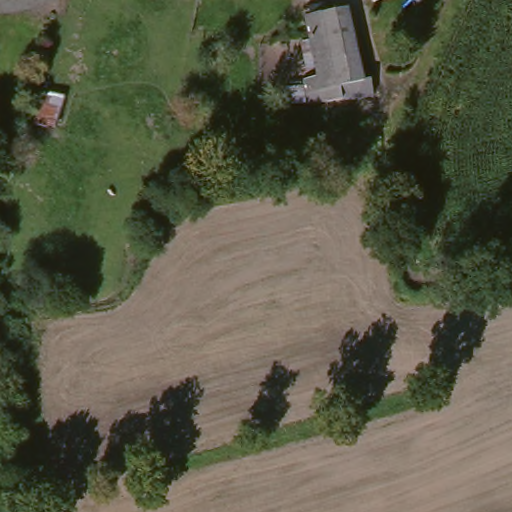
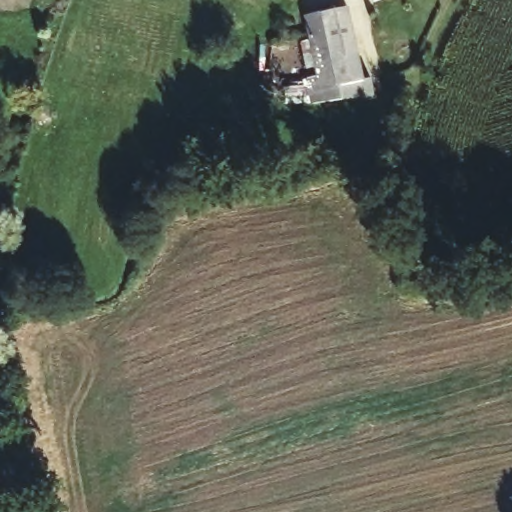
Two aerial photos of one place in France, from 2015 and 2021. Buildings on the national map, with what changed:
unchanged [(316,80),(303,21),(308,20),(306,10),(322,7),(324,16),(345,12),(362,85),(370,83),(372,100),(304,107),(301,83),(316,80)]

